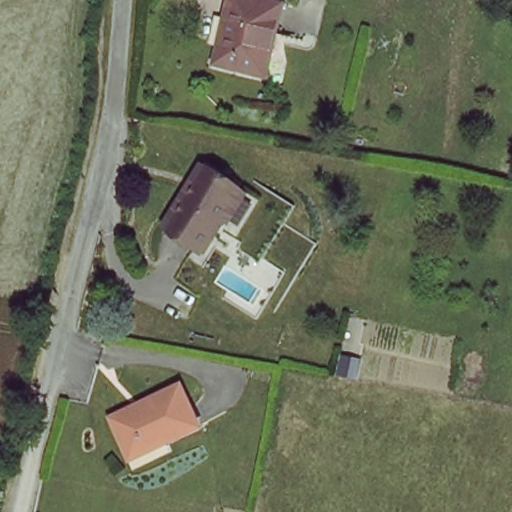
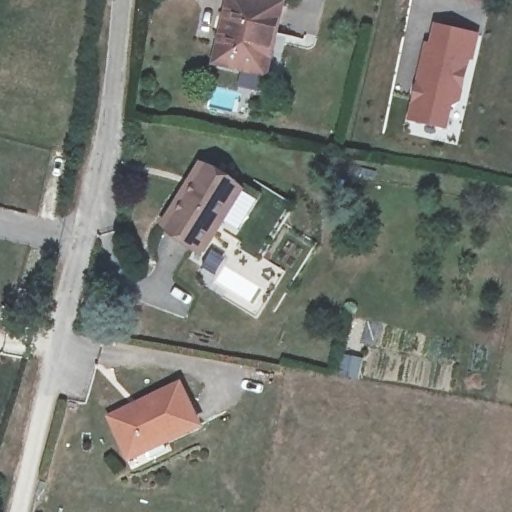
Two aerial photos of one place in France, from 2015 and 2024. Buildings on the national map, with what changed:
unchanged [(263,0),(282,4),(263,72),(215,61),(231,0),(263,0)]
new [(477,40),(456,112),(449,110),(441,140),(398,125),(428,25),(477,40)]
unchanged [(162,222),(204,165),(245,191),(202,251),(162,222)]
unchanged [(126,455),(111,421),(177,391),(196,430),(163,446),(160,440),(126,455)]

